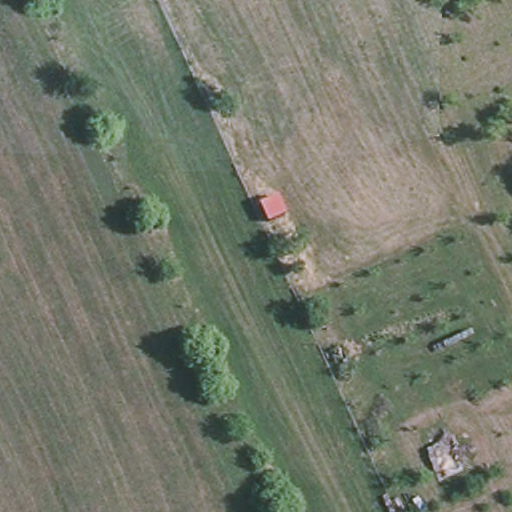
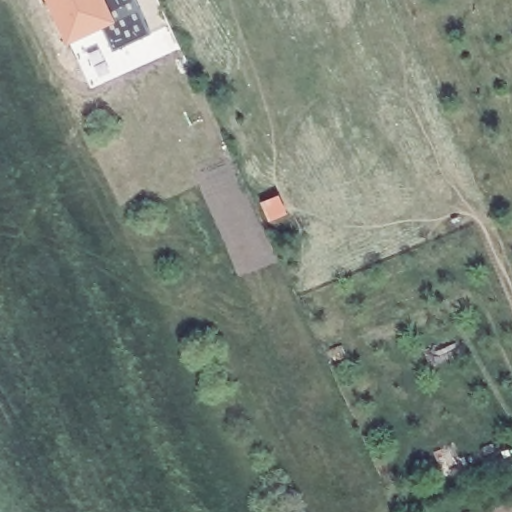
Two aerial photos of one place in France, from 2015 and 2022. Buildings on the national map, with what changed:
new [(112,51),(104,29),(67,45),(45,0),(134,0),(149,36),(112,51)]
new [(287,215),(270,224),(260,205),(280,196),(287,215)]

